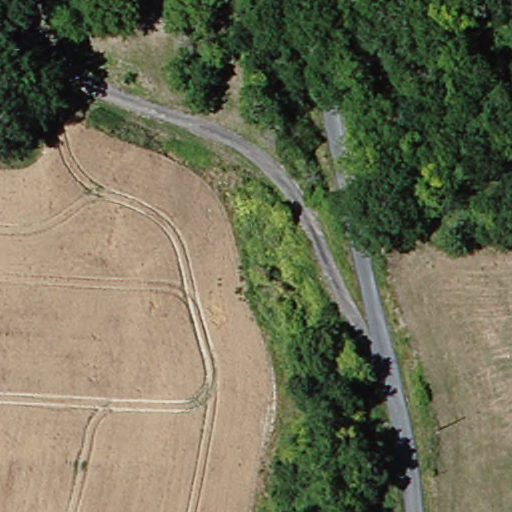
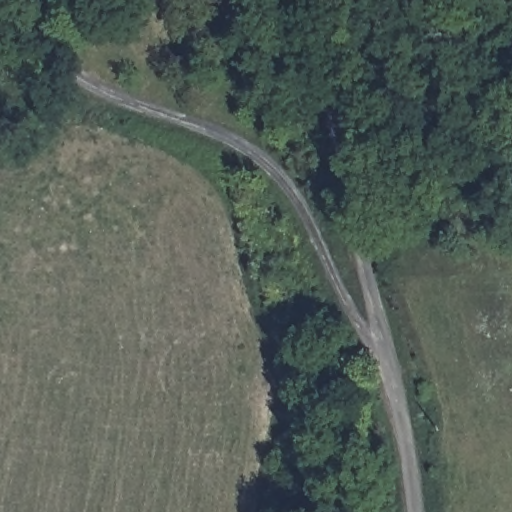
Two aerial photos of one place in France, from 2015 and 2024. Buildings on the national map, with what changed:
[]

